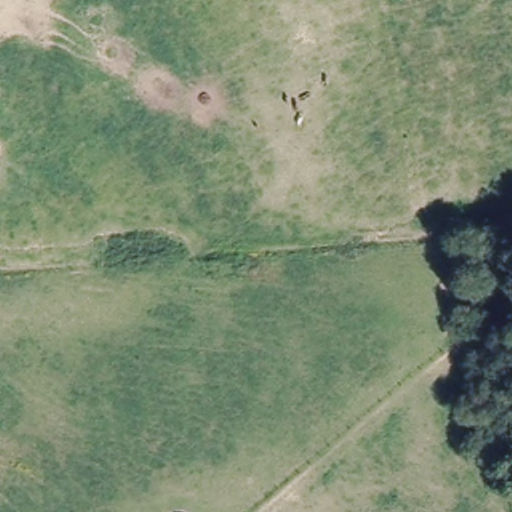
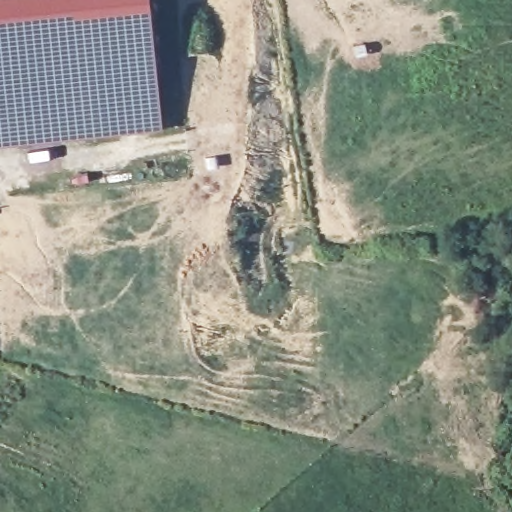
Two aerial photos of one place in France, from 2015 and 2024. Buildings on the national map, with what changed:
new [(0,0),(147,0),(161,129),(0,146),(0,0)]

